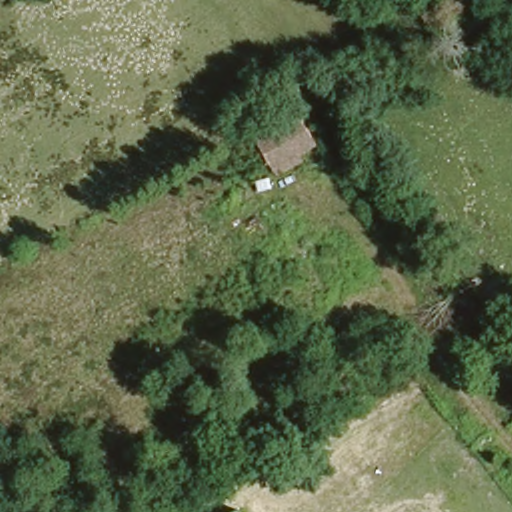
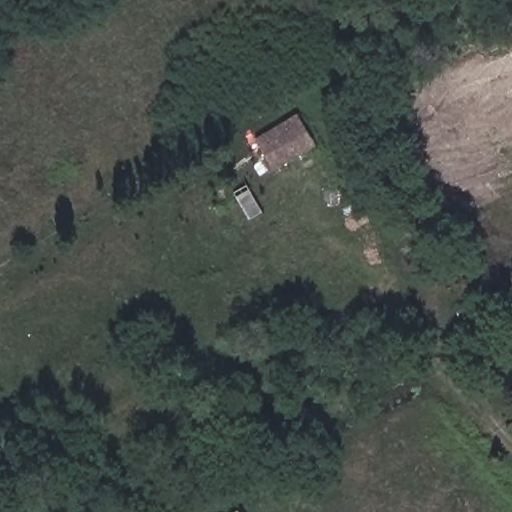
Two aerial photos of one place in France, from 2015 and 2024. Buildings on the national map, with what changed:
unchanged [(250,137),(293,111),(312,150),(269,172),(250,137)]
unchanged [(241,510),(242,512),(237,512),(241,510)]

